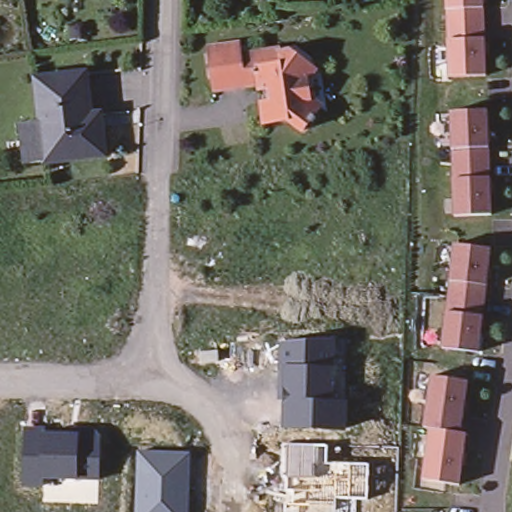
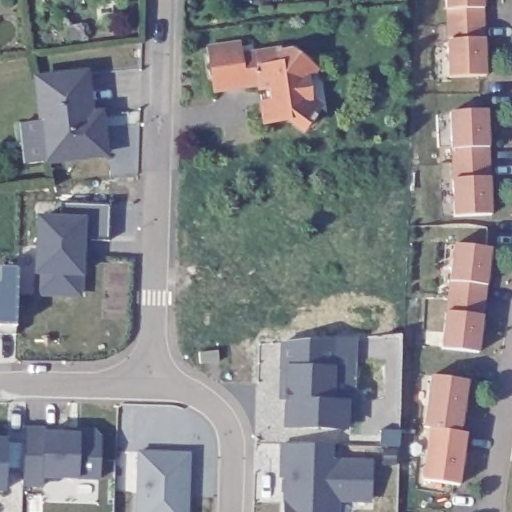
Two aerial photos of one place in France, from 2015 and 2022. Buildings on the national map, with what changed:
unchanged [(446,0),(483,0),(485,75),(465,76),(448,77),(446,0)]
unchanged [(318,119),(315,117),(310,127),(296,119),(273,122),(270,101),(268,90),(266,82),(223,87),(217,47),(245,44),(247,55),(287,50),(288,53),(300,52),(312,66),(317,66),(310,77),(313,95),(325,101),(319,112),(321,114),(318,119)]
unchanged [(35,79),(82,72),(87,115),(98,114),(100,127),(103,152),(92,154),(46,160),(24,164),(19,124),(40,121),(35,79)]
unchanged [(467,111),(486,110),(490,214),(477,215),(453,216),(450,111),(467,111)]
new [(38,219),(60,219),(60,201),(108,203),(107,239),(86,237),(85,254),(80,254),(78,272),(78,293),(36,292),(37,270),(38,219)]
unchanged [(441,347),(453,244),(480,247),(490,249),(485,296),(477,352),(441,347)]
new [(16,269),(14,332),(0,332),(0,268),(16,269)]
unchanged [(285,399),(278,398),(280,342),(336,337),(337,353),(336,367),(338,367),(337,400),(350,401),(347,432),(284,427),(285,399)]
unchanged [(430,375),(466,381),(460,432),(428,428),(423,427),(430,375)]
unchanged [(21,487),(23,426),(45,427),(45,431),(80,432),(80,428),(101,430),(100,482),(77,480),(45,478),(43,478),(43,487),(21,487)]
unchanged [(458,485),(421,480),(428,428),(460,432),(465,432),(458,485)]
new [(4,441),(3,487),(0,487),(0,440),(4,441)]
unchanged [(293,504),(293,491),(288,490),(289,477),(284,477),(285,445),(328,446),(328,463),(370,465),(370,500),(337,499),(336,512),(286,512),(286,504),(293,504)]
unchanged [(191,452),(190,512),(136,512),(137,449),(191,452)]

